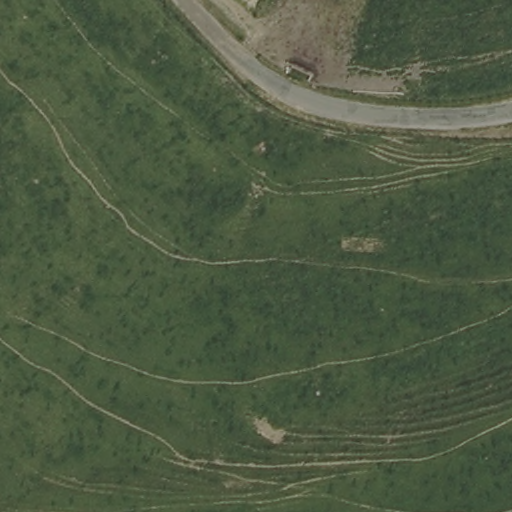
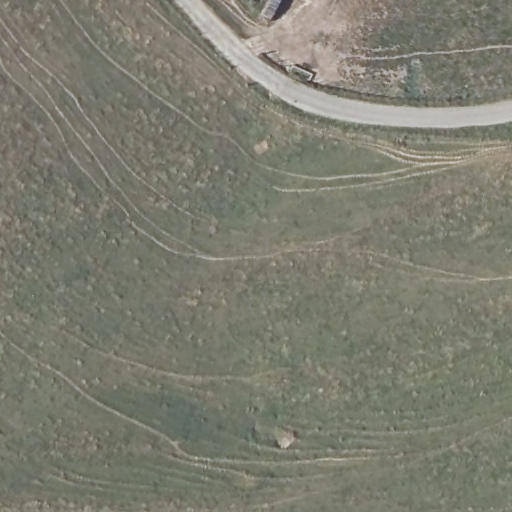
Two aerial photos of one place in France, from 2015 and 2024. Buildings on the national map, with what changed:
[]

